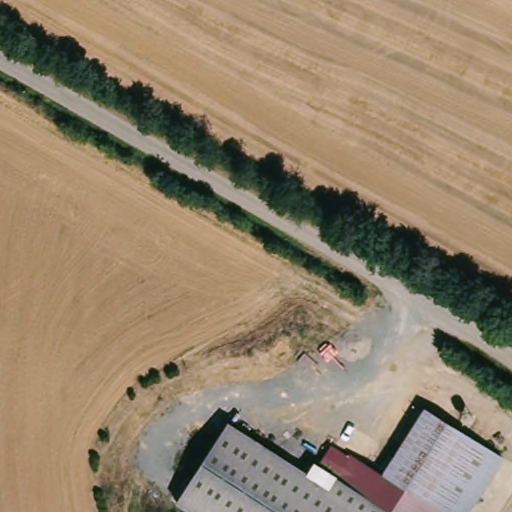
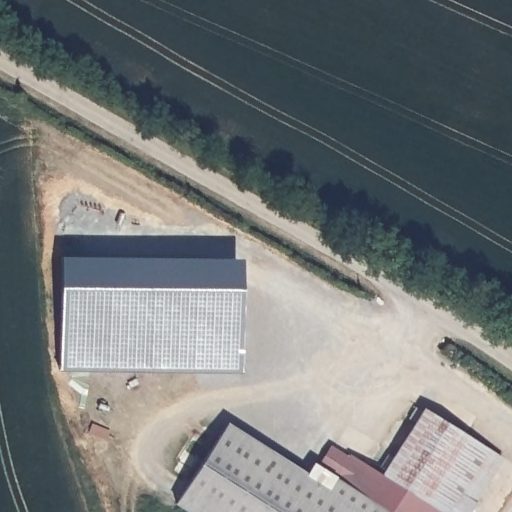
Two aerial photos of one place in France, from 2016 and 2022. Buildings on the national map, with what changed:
new [(61,370),(61,258),(243,259),(242,371),(61,370)]
unchanged [(356,456),(388,477),(432,408),(510,460),(476,512),(392,512),(341,479),(356,456)]
unchanged [(233,426),(334,491),(341,479),(392,512),(202,512),(186,502),(233,426)]

